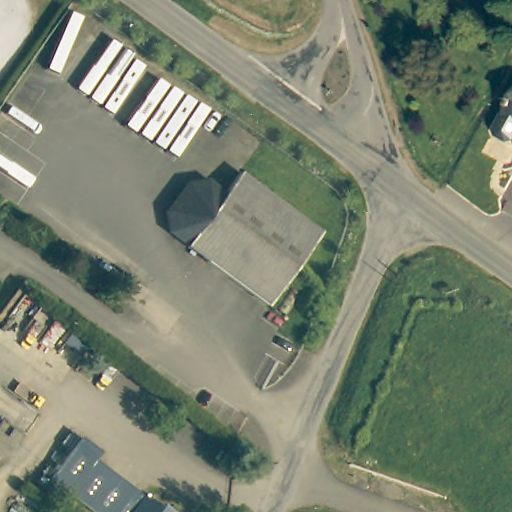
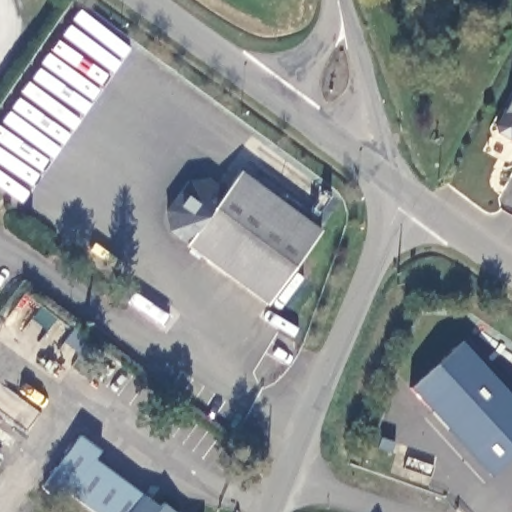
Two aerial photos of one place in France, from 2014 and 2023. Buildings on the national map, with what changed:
unchanged [(512,114),(509,112),(512,106),(512,114)]
unchanged [(213,179),(229,191),(248,171),(327,236),(272,306),(172,228),(170,218),(168,205),(187,180),(200,179),(213,179)]
new [(512,399),(512,458),(491,478),(410,389),(461,344),(512,399)]
unchanged [(166,500),(182,512),(95,512),(69,493),(66,497),(40,479),(74,432),(100,451),(96,457),(162,505),(166,500)]

